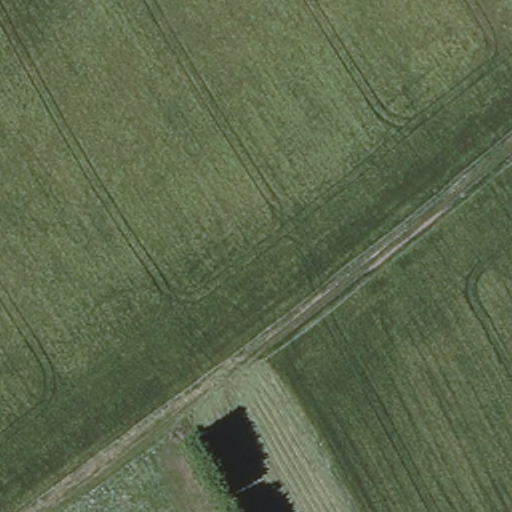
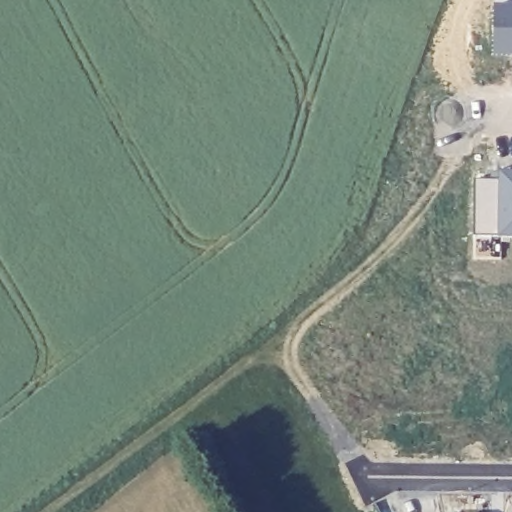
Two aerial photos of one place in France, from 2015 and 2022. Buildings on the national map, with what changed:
new [(493,51),(495,4),(512,5),(512,52),(493,51)]
new [(500,170),(512,171),(512,236),(474,235),(475,178),(500,179),(500,170)]

